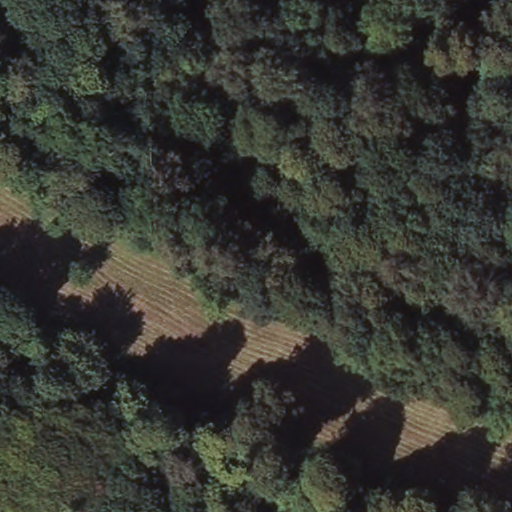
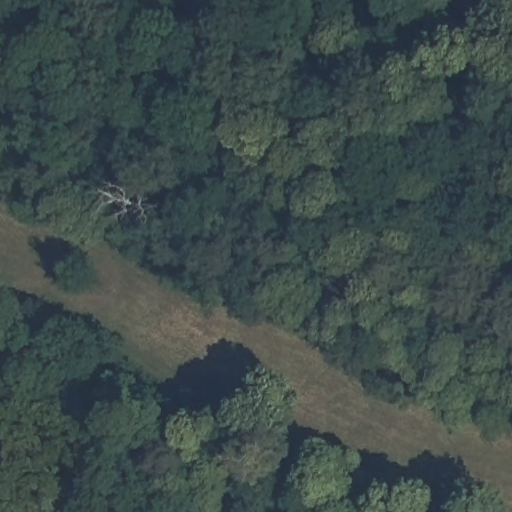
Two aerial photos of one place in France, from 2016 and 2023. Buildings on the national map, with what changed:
[]

